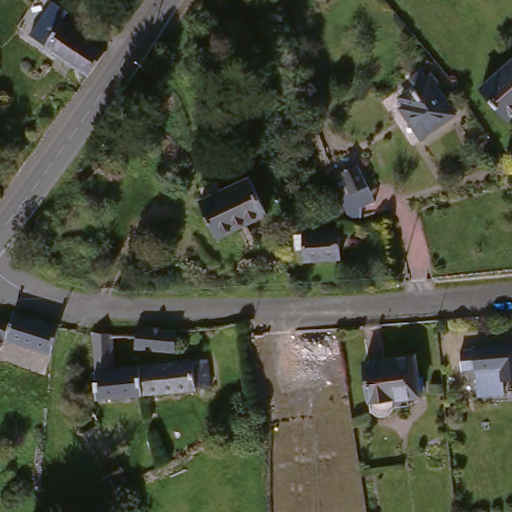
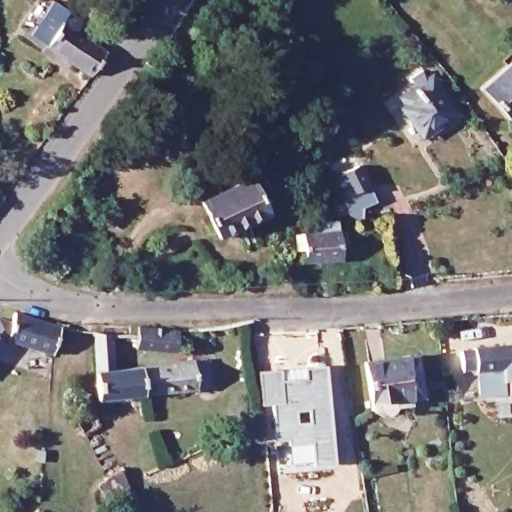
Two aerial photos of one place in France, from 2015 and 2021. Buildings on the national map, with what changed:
unchanged [(50,60),(36,48),(55,25),(72,34),(82,42),(87,36),(100,47),(92,56),(107,69),(91,89),(68,71),(66,74),(50,60)]
unchanged [(480,94),(512,68),(512,119),(504,125),(480,94)]
unchanged [(410,109),(405,102),(433,80),(441,89),(438,92),(456,114),(427,139),(406,113),(410,109)]
unchanged [(360,162),(371,199),(360,203),(362,214),(352,215),(346,213),(335,201),(323,173),(360,162)]
unchanged [(221,244),(203,210),(207,207),(202,199),(219,190),(224,199),(250,185),(268,219),(221,244)]
unchanged [(337,237),(339,263),(308,265),(307,239),(337,237)]
unchanged [(0,349),(0,314),(11,319),(1,348),(0,349)]
unchanged [(1,348),(11,319),(62,332),(56,358),(1,348)]
unchanged [(102,333),(107,372),(130,369),(134,399),(89,403),(82,331),(102,333)]
unchanged [(140,341),(140,334),(177,336),(177,358),(140,356),(140,341)]
demolished [(285,376),(278,354),(320,344),(325,365),(285,376)]
unchanged [(450,355),(512,348),(512,402),(453,406),(450,355)]
unchanged [(168,365),(195,361),(199,392),(134,399),(130,369),(168,365)]
unchanged [(408,397),(381,399),(382,411),(377,411),(378,417),(370,417),(370,409),(362,410),(360,364),(406,361),(408,397)]
new [(312,468),(309,441),(285,443),(285,437),(274,437),(270,403),(260,403),(257,371),(303,365),(323,363),(332,461),(312,468)]
unchanged [(121,475),(128,488),(132,493),(113,503),(104,485),(121,475)]

